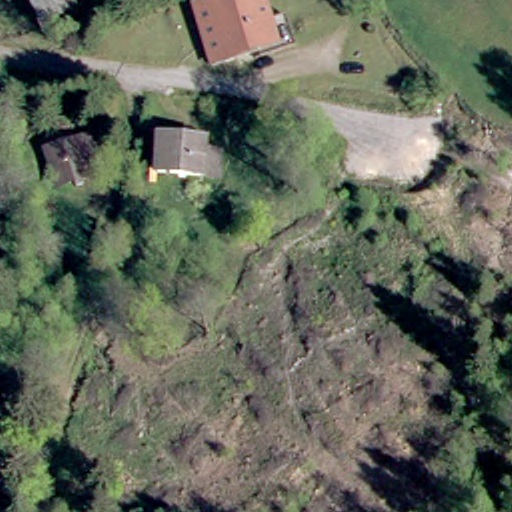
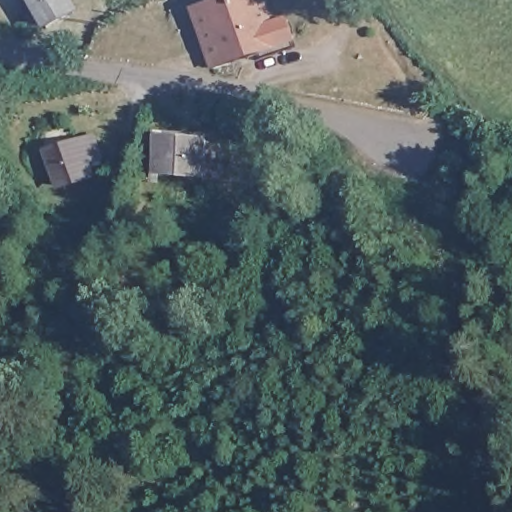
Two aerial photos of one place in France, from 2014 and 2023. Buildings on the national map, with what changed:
unchanged [(43,26),(27,0),(65,0),(70,8),(43,26)]
unchanged [(226,0),(263,0),(268,14),(277,37),(215,60),(196,12),(226,0)]
unchanged [(57,187),(46,154),(94,137),(102,158),(85,165),(89,177),(57,187)]
unchanged [(159,146),(205,148),(203,183),(155,179),(159,146)]

